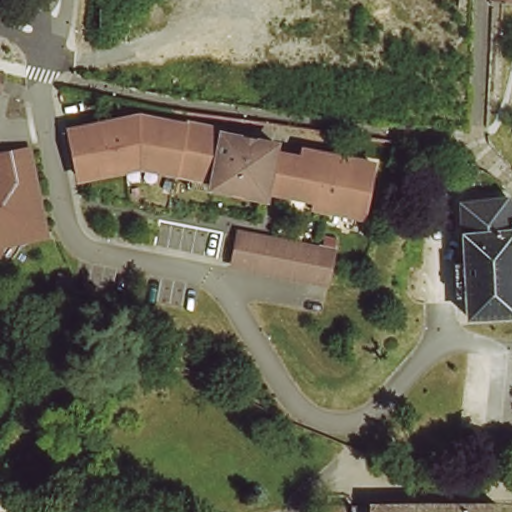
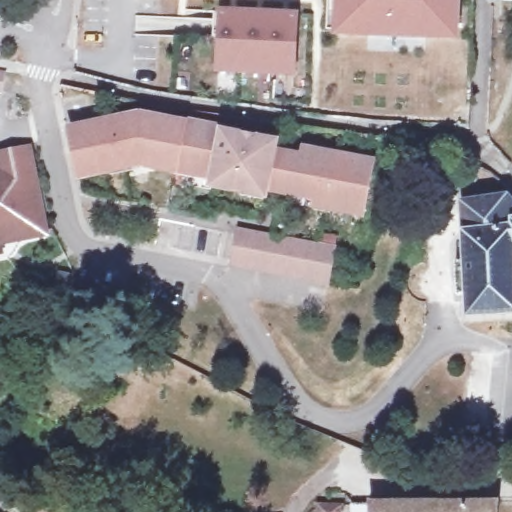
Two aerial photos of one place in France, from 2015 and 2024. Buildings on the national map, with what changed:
demolished [(412,35),(412,44),(403,52),(389,52),(378,41),(378,33),(342,31),(342,39),(315,37),(315,50),(302,50),(303,37),(261,36),(262,0),(449,0),(448,35),(412,35)]
new [(333,35),(335,0),(461,0),(459,40),(333,35)]
new [(296,76),(216,74),(218,10),(298,12),(296,76)]
demolished [(78,24),(89,25),(88,44),(77,43),(78,24)]
unchanged [(3,94),(0,93),(0,72),(8,75),(3,94)]
unchanged [(98,119),(103,143),(117,140),(112,116),(138,110),(184,120),(185,118),(223,125),(222,129),(275,139),(274,145),(266,186),(175,169),(176,161),(138,154),(107,160),(108,167),(79,174),(73,142),(69,125),(98,119)]
unchanged [(18,235),(16,230),(0,234),(0,155),(0,150),(25,145),(26,150),(42,231),(18,235)]
unchanged [(323,157),(320,176),(333,179),(339,152),(373,159),(363,212),(328,205),(330,198),(280,189),(287,150),(323,157)]
unchanged [(465,312),(464,291),(453,291),(453,261),(464,261),(464,201),(505,200),(512,208),(512,312),(465,312)]
unchanged [(335,247),(330,280),(236,261),(235,261),(236,258),(242,229),(335,247)]
unchanged [(75,272),(72,285),(62,282),(65,270),(75,272)]
unchanged [(510,500),(508,512),(365,512),(365,505),(380,505),(510,500)]
unchanged [(300,503),(324,505),(324,512),(300,512),(300,503)]

